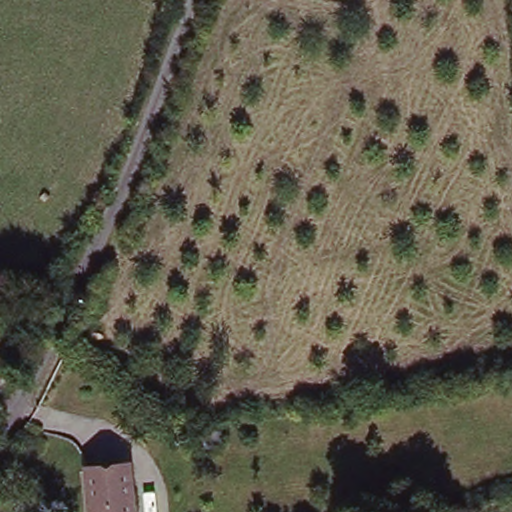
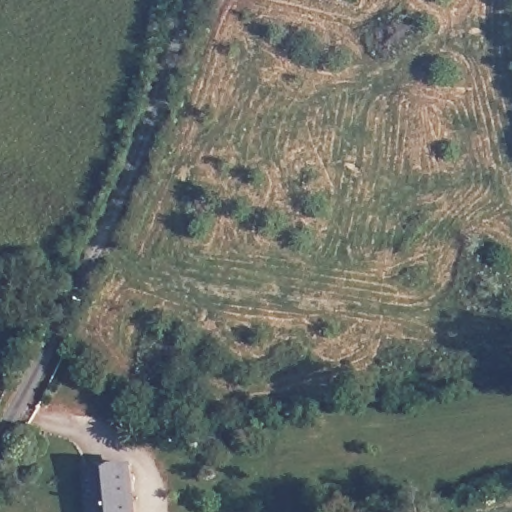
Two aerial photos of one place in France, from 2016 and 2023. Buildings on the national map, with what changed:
unchanged [(140,482),(139,512),(100,512),(101,481),(140,482)]

